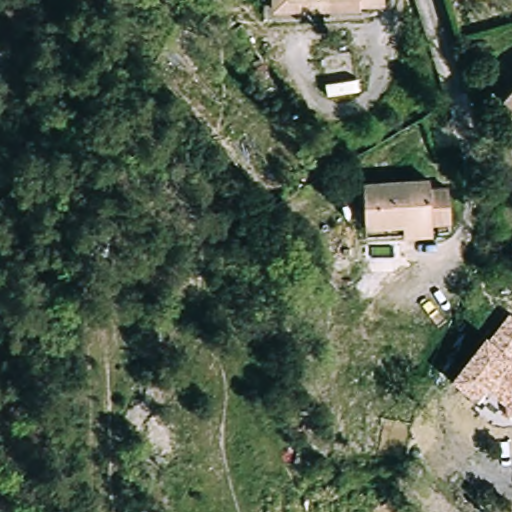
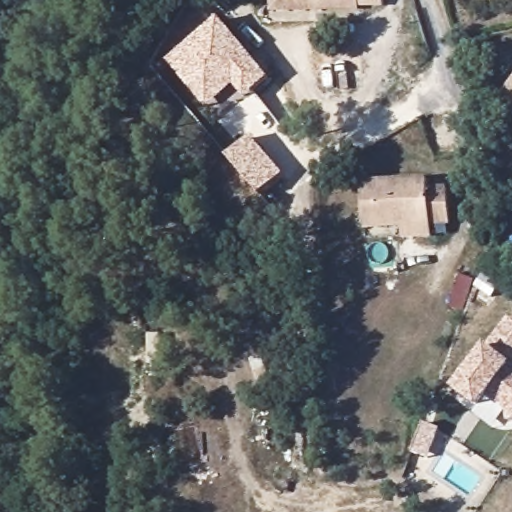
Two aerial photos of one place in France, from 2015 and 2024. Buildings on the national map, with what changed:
unchanged [(310,0),(283,5),(282,0),(310,0)]
unchanged [(352,0),(353,5),(355,11),(286,22),(283,5),(310,0),(352,0)]
unchanged [(352,0),(376,0),(353,5),(352,0)]
new [(218,18),(269,79),(243,98),(233,86),(206,109),(168,63),(218,18)]
unchanged [(504,105),(512,95),(512,111),(504,105)]
new [(284,175),(259,195),(227,157),(251,138),(284,175)]
unchanged [(370,236),(364,192),(429,181),(430,194),(448,192),(453,224),(434,227),(403,231),(370,236)]
unchanged [(512,321),(512,423),(510,423),(509,411),(493,397),(482,412),(455,391),(488,347),(510,320),(512,321)]
new [(423,430),(437,435),(427,466),(412,461),(423,430)]

